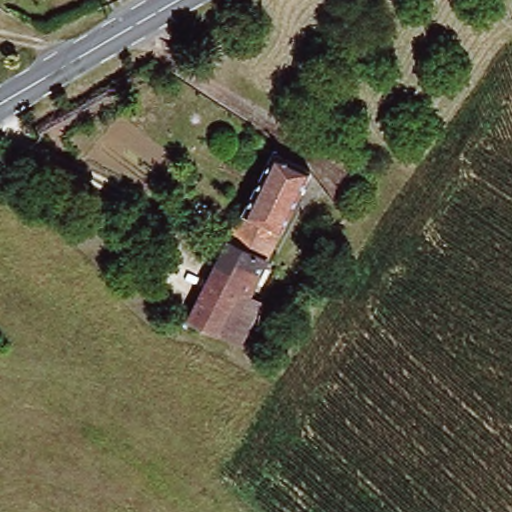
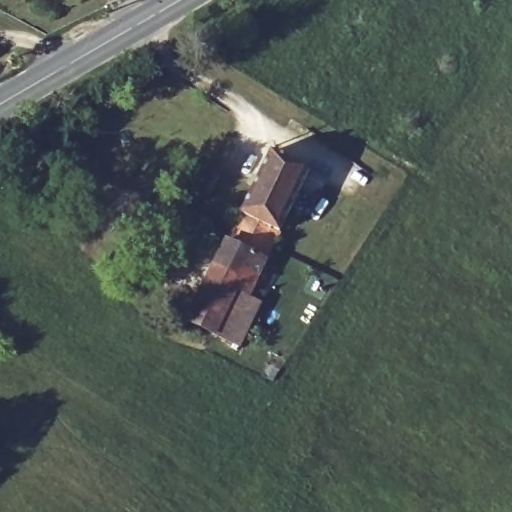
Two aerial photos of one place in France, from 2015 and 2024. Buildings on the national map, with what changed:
unchanged [(279,231),(263,261),(247,299),(261,307),(236,352),(184,325),(224,244),(237,215),(269,155),(306,174),(279,231)]

